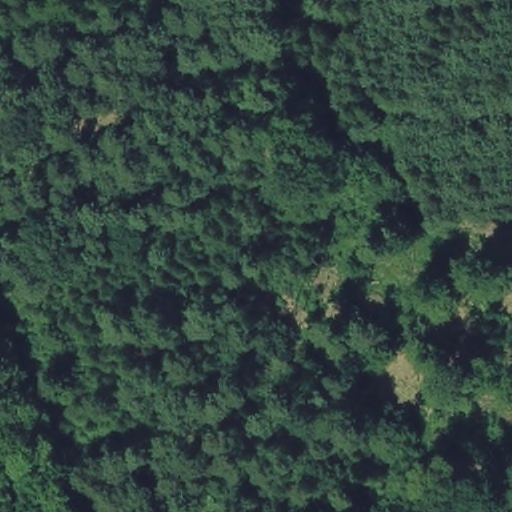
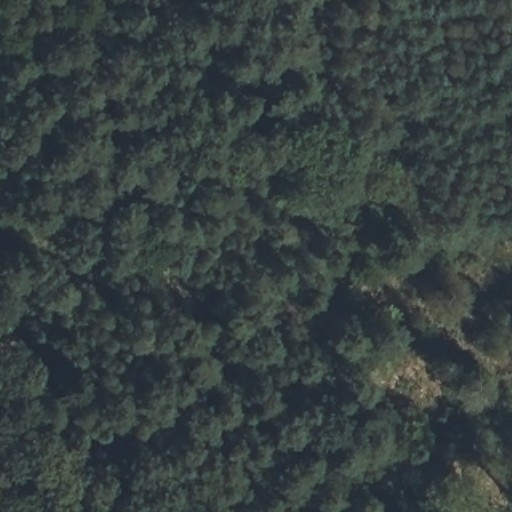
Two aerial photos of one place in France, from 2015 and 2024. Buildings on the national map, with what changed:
[]

